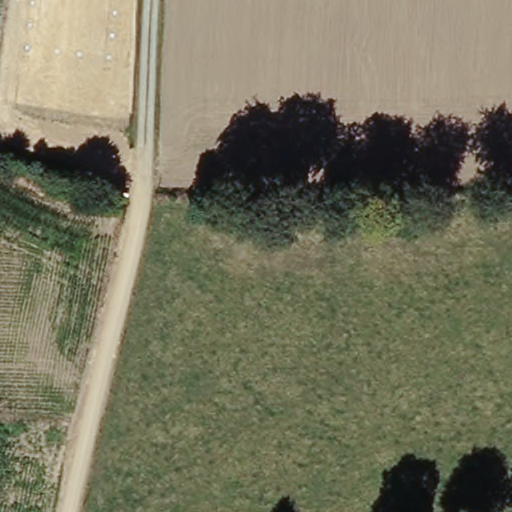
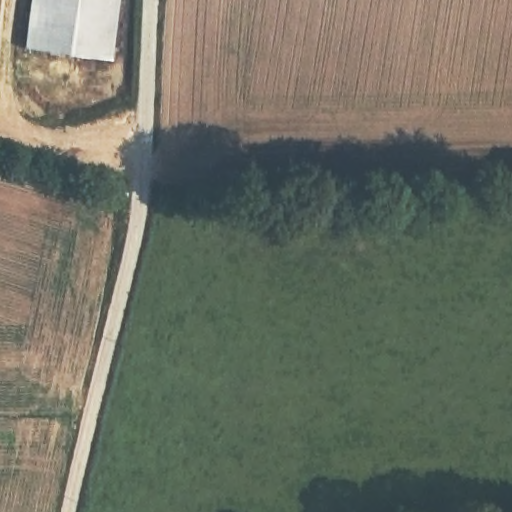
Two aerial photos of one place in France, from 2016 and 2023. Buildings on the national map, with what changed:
new [(114,59),(25,48),(31,0),(121,0),(114,59)]

